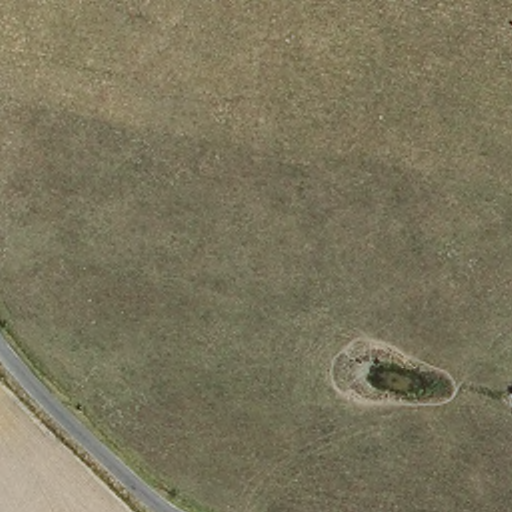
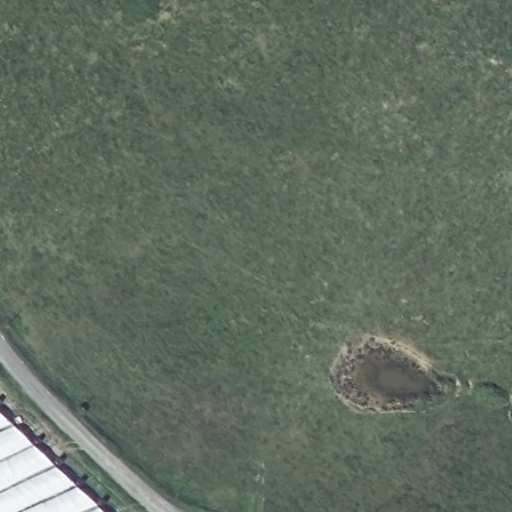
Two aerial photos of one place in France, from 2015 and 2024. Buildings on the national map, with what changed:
new [(0,410),(107,512),(0,512),(0,410)]
demolished [(75,512),(0,512),(0,422),(75,512)]

